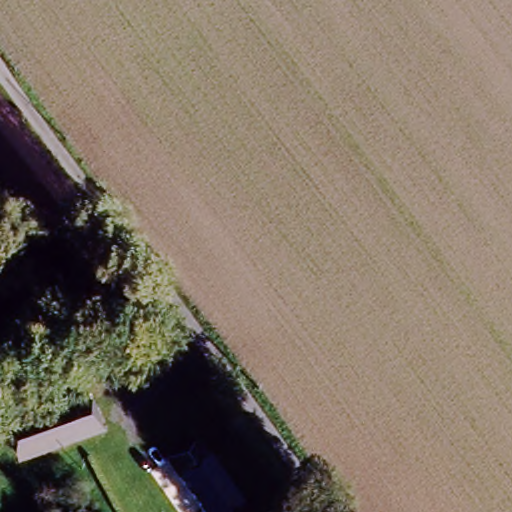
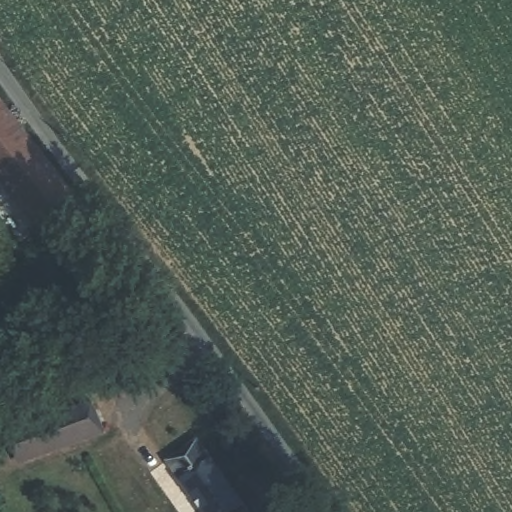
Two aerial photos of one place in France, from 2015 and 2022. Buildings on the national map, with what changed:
unchanged [(90,215),(47,247),(0,191),(0,99),(90,215)]
unchanged [(89,403),(101,435),(20,466),(8,437),(89,403)]
unchanged [(248,512),(205,512),(172,452),(204,434),(248,512)]

